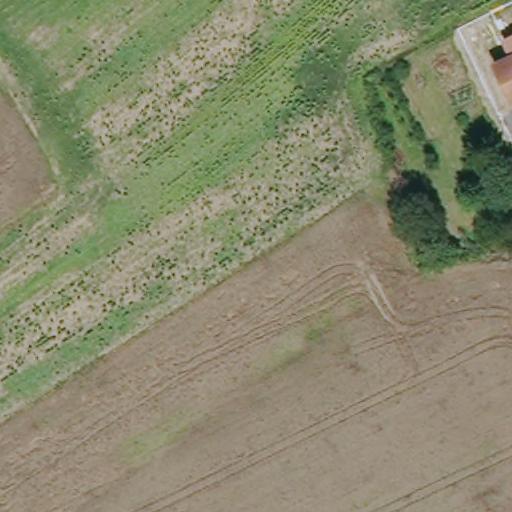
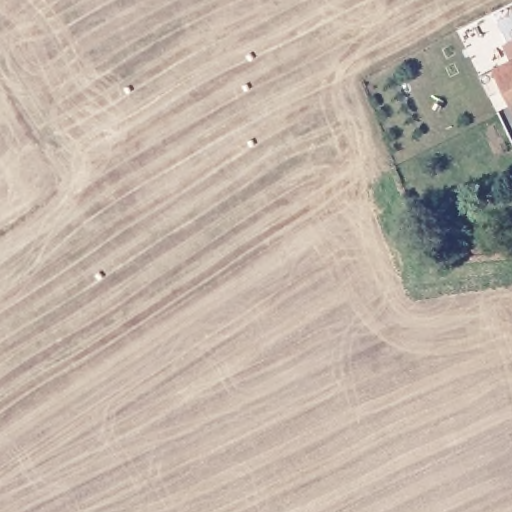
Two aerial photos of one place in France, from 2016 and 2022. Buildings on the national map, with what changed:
unchanged [(491,69),(509,60),(500,43),(512,37),(512,109),(491,69)]

